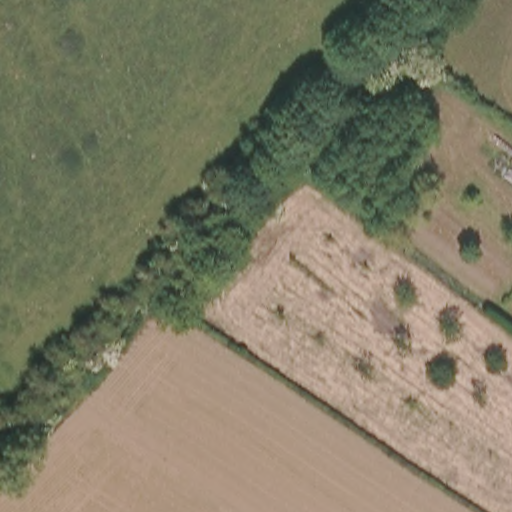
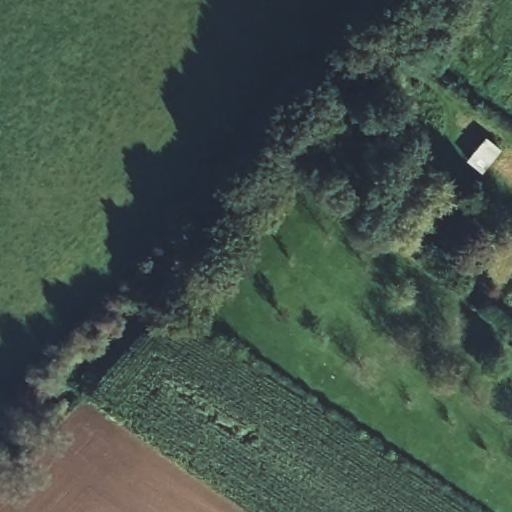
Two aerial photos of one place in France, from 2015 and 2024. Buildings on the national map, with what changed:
[]

